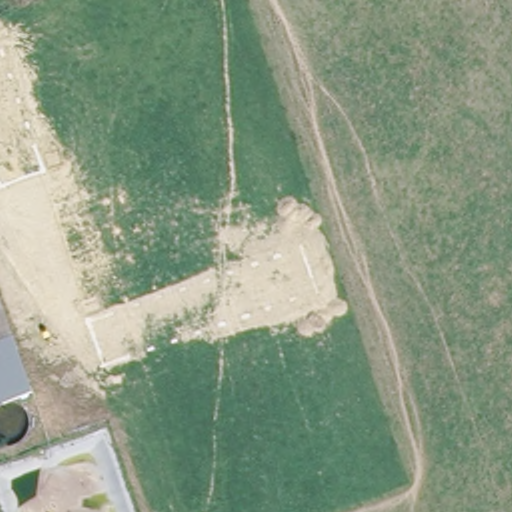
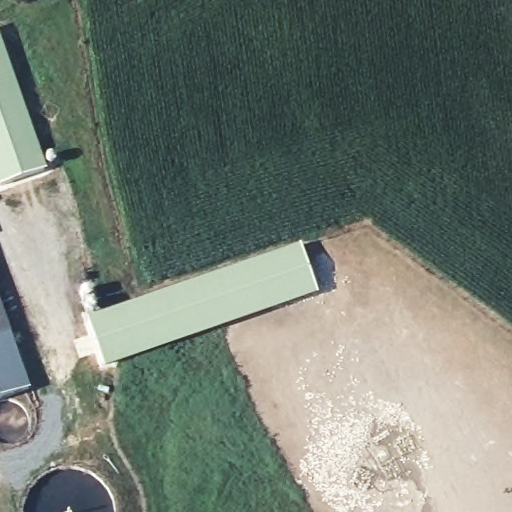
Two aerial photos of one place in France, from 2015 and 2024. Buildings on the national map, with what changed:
new [(44,169),(0,184),(0,40),(44,169)]
new [(104,366),(88,319),(301,245),(317,293),(104,366)]
demolished [(0,333),(0,301),(10,329),(0,333)]
new [(9,332),(30,389),(0,399),(0,306),(9,332)]

